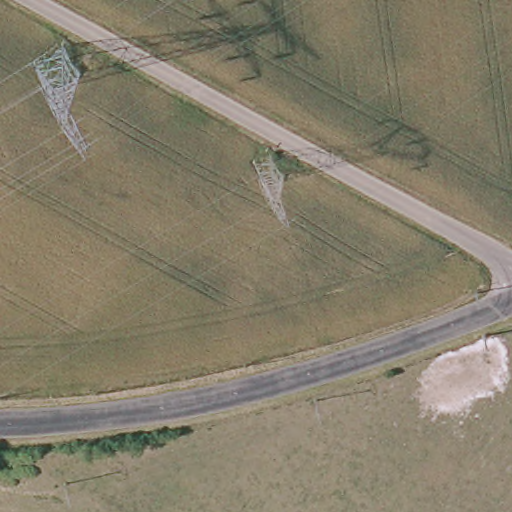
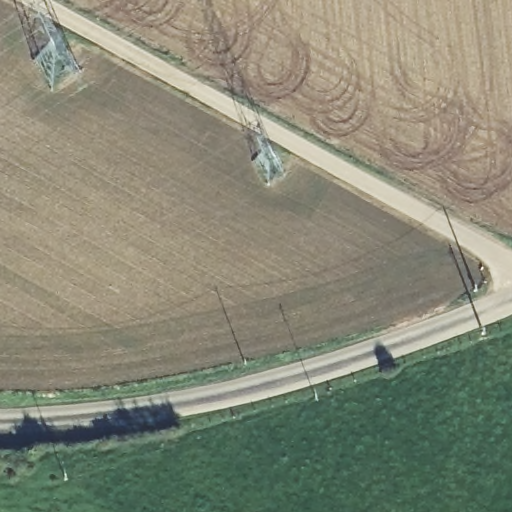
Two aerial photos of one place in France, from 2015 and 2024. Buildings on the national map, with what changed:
unchanged [(512,354),(507,354),(504,339),(512,337),(512,354)]

